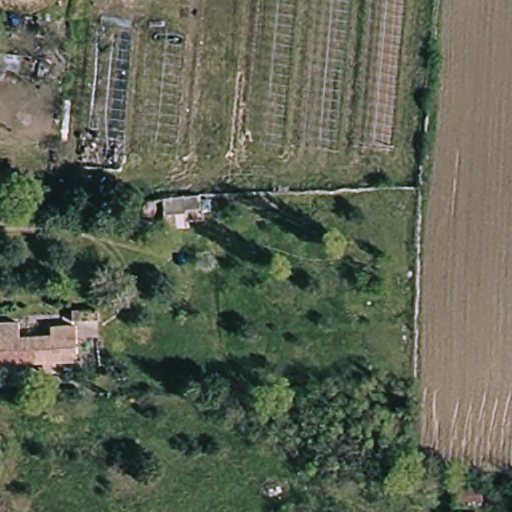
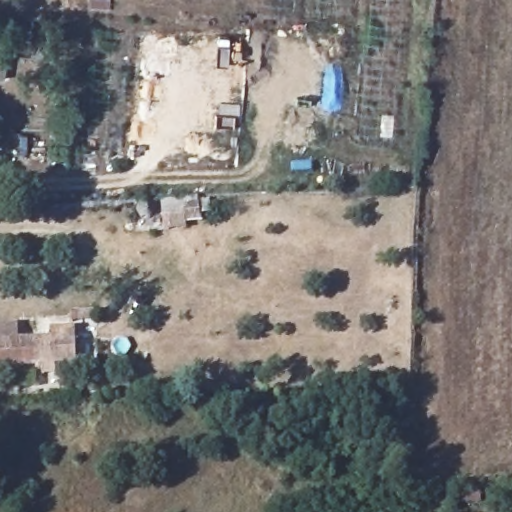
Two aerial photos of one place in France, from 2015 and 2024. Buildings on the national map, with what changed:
unchanged [(167,177),(73,167),(84,22),(237,36),(241,0),(402,0),(388,156),(167,177)]
unchanged [(197,197),(200,224),(152,228),(148,200),(197,197)]
unchanged [(0,368),(0,323),(17,323),(17,338),(47,338),(47,328),(74,325),(76,365),(0,368)]

